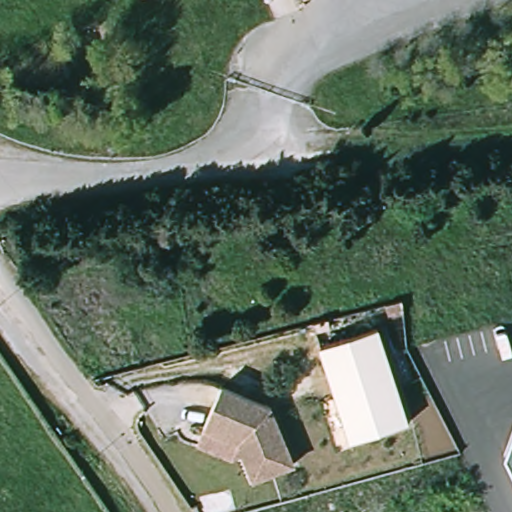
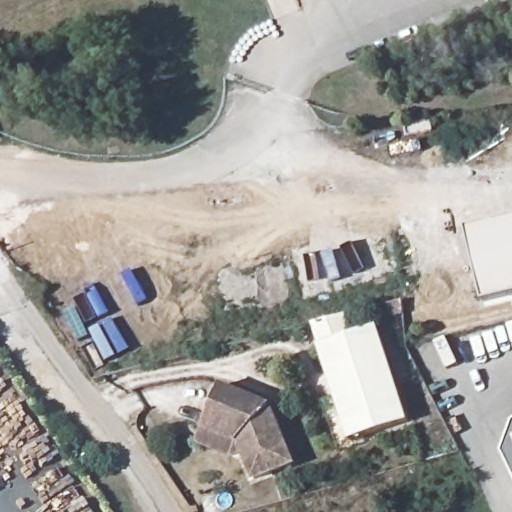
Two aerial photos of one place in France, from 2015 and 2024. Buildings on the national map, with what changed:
new [(486,301),(469,227),(512,217),(512,295),(486,301)]
unchanged [(404,302),(406,316),(388,320),(389,307),(404,302)]
unchanged [(401,423),(343,442),(313,346),(370,327),(401,423)]
unchanged [(196,437),(202,422),(218,382),(269,402),(289,457),(250,472),(240,448),(230,452),(196,437)]
unchanged [(508,452),(512,440),(512,462),(508,452)]

